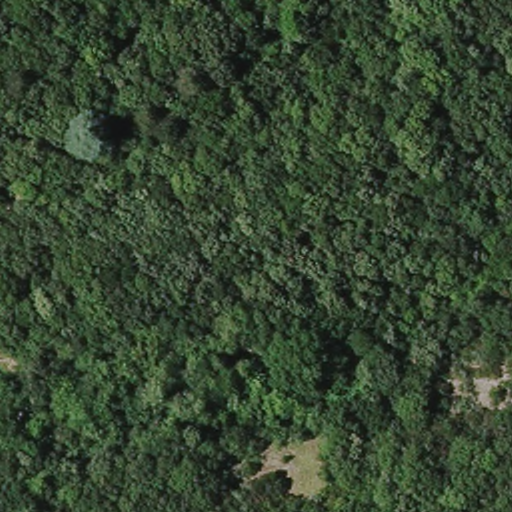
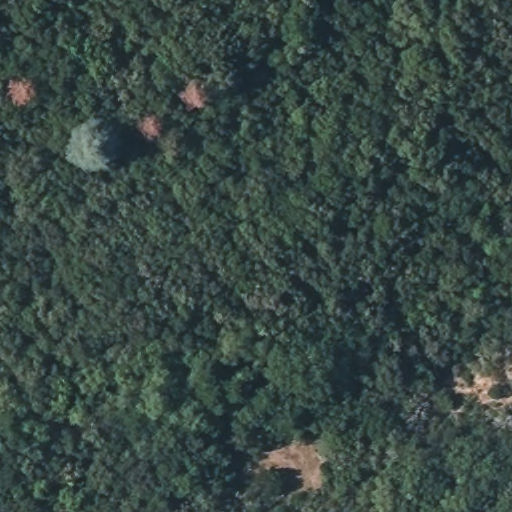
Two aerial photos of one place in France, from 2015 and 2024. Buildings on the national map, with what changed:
unchanged [(11,320),(0,320),(0,299),(12,297),(11,320)]

